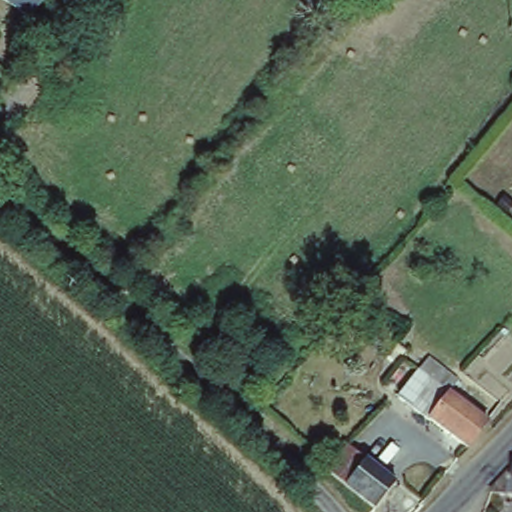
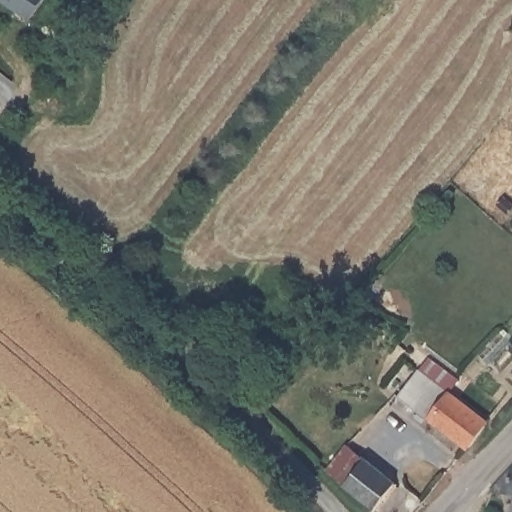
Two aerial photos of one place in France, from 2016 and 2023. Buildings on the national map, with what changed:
unchanged [(0,0),(39,0),(26,18),(0,0)]
unchanged [(491,429),(472,450),(434,418),(429,423),(399,396),(424,366),(453,388),(452,392),(494,426),(491,429)]
unchanged [(331,477),(350,452),(398,487),(377,512),(331,477)]
unchanged [(494,494),(494,492),(502,487),(512,476),(512,497),(494,494)]

